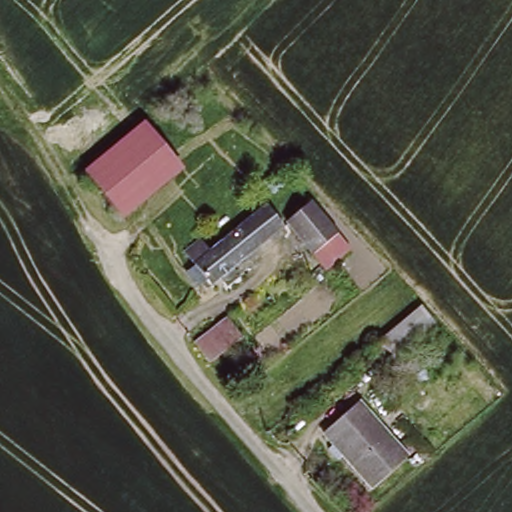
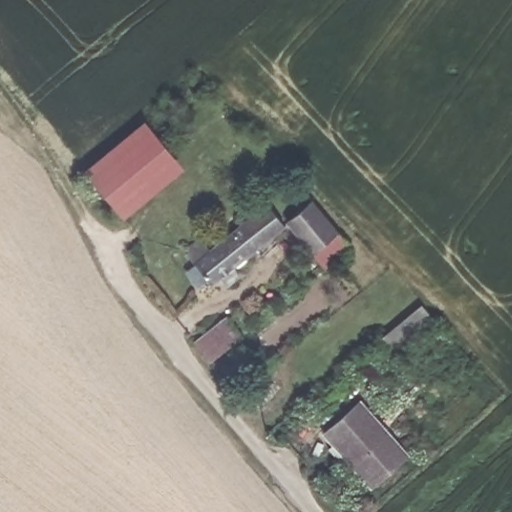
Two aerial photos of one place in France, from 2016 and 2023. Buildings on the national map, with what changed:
unchanged [(148,120),(186,164),(128,212),(90,167),(148,120)]
unchanged [(350,245),(326,264),(286,217),(310,197),(350,245)]
unchanged [(232,265),(239,272),(226,282),(220,274),(210,281),(207,277),(197,285),(185,270),(195,262),(184,249),(200,235),(210,247),(267,200),(284,221),(232,265)]
unchanged [(436,325),(392,362),(378,345),(421,308),(436,325)]
unchanged [(230,345),(205,366),(189,345),(222,320),(237,340),(230,345)]
unchanged [(323,430),(359,397),(407,451),(372,483),(323,430)]

